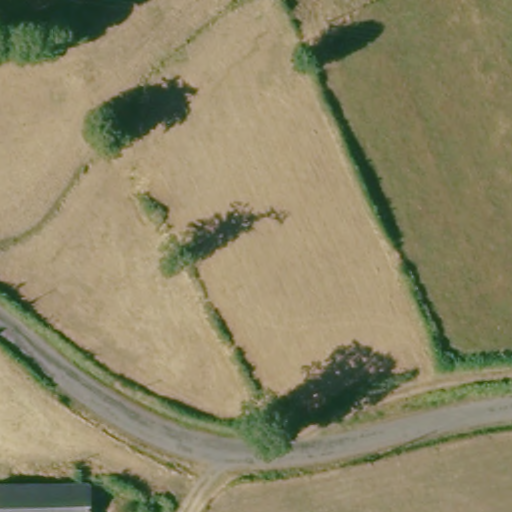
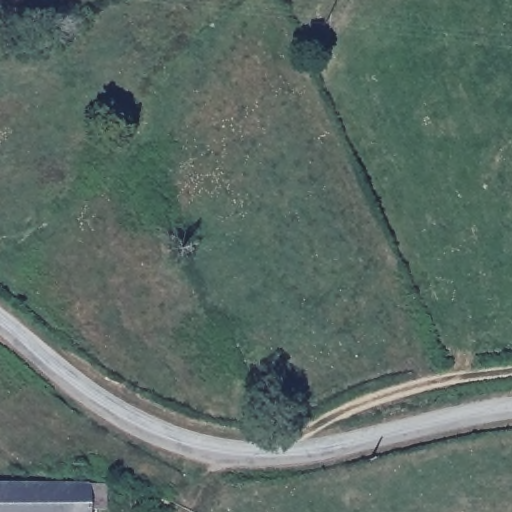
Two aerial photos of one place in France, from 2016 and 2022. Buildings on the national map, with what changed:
unchanged [(110,507),(91,506),(91,512),(0,512),(0,486),(110,485),(110,507)]

